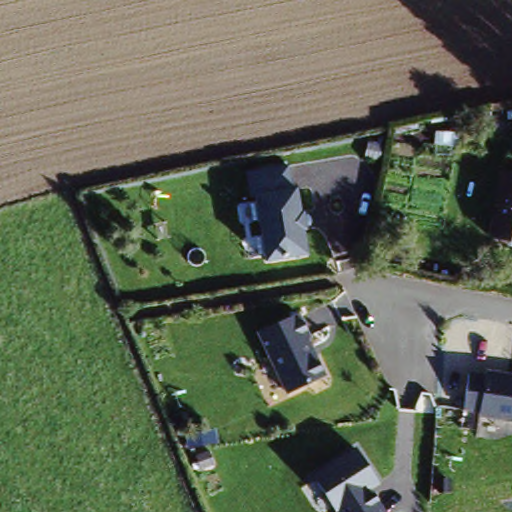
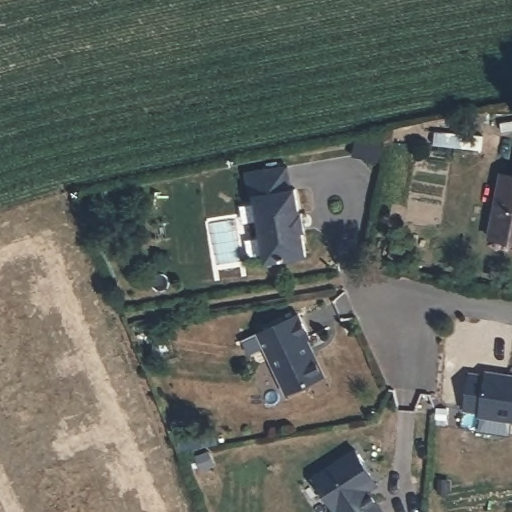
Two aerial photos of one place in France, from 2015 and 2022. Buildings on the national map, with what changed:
unchanged [(499,148),(495,162),(447,151),(451,139),(499,148)]
unchanged [(302,212),(305,211),(308,232),(305,232),(309,257),(265,263),(256,196),(250,197),(247,172),(291,167),(294,189),(298,188),(302,212)]
unchanged [(497,183),(512,185),(512,244),(486,241),(497,183)]
unchanged [(301,313),(312,339),(309,340),(316,356),(319,355),(329,377),(288,396),(258,332),(301,313)]
unchanged [(479,416),(480,412),(465,410),(471,373),(486,375),(486,371),(512,374),(512,421),(479,416)]
unchanged [(357,449),(383,488),(375,493),(387,512),(338,512),(315,474),(357,449)]

